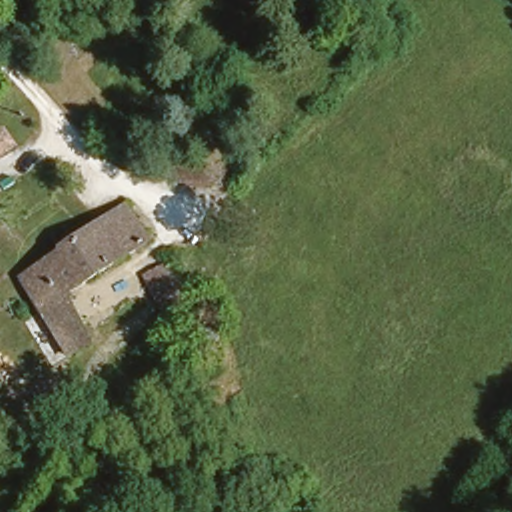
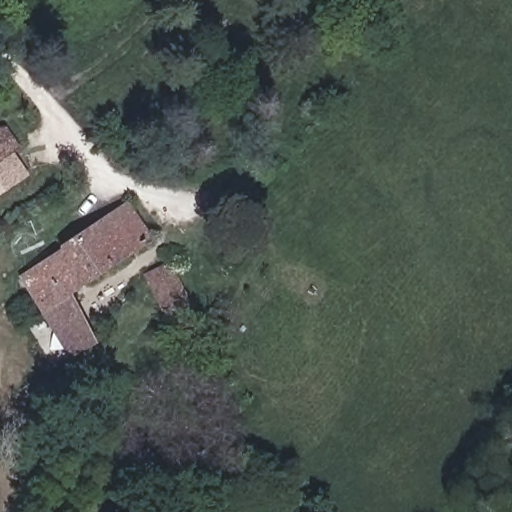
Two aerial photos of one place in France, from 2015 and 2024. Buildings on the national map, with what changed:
new [(19,146),(12,151),(27,175),(0,193),(0,127),(4,126),(19,146)]
unchanged [(101,274),(76,233),(121,202),(152,239),(101,274)]
unchanged [(55,247),(76,233),(101,274),(82,288),(55,247)]
unchanged [(64,301),(91,343),(72,356),(15,274),(55,247),(82,288),(64,301)]
unchanged [(162,315),(158,309),(147,279),(172,269),(186,306),(162,315)]
unchanged [(117,321),(136,310),(141,319),(122,329),(117,321)]

